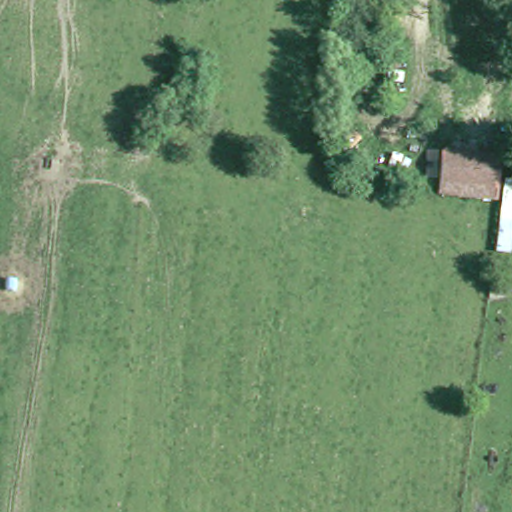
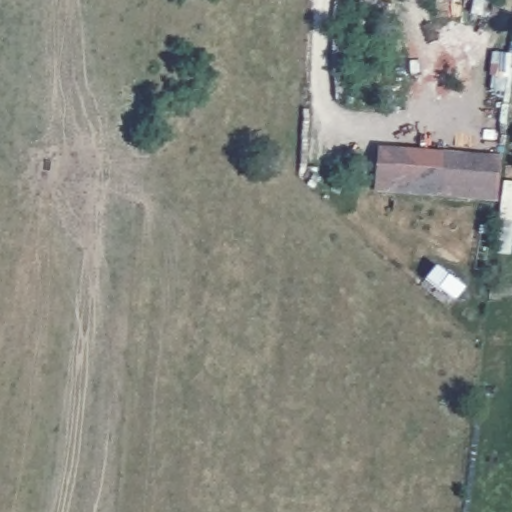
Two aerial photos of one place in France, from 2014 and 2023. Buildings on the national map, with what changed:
new [(439,192),(497,199),(497,202),(376,191),(379,147),(441,151),(439,192)]
unchanged [(500,156),(497,199),(439,192),(441,151),(500,156)]
new [(512,181),(512,250),(512,254),(494,252),(504,180),(512,181)]

